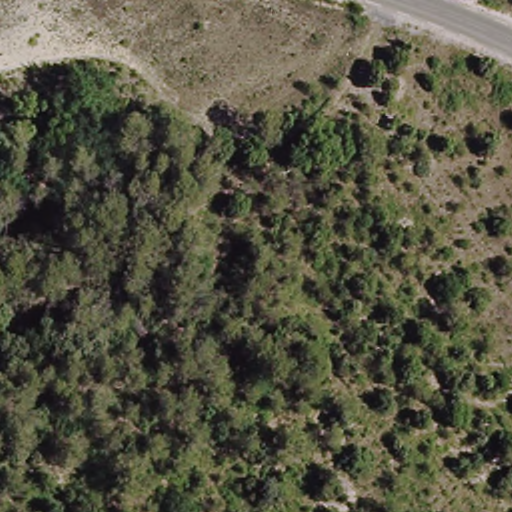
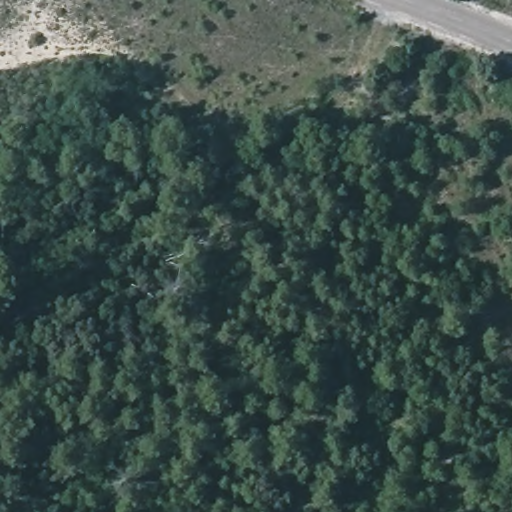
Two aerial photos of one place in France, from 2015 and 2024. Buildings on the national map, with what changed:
[]

